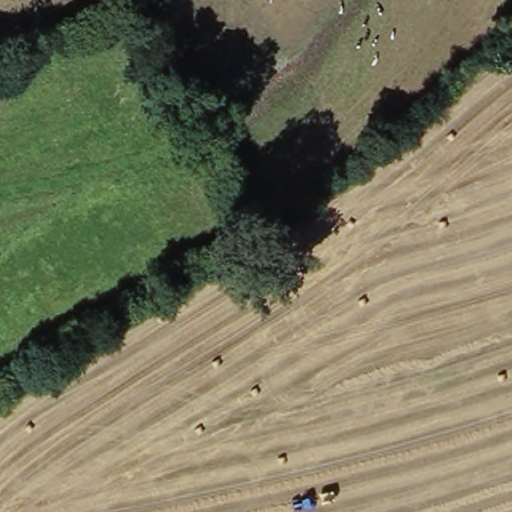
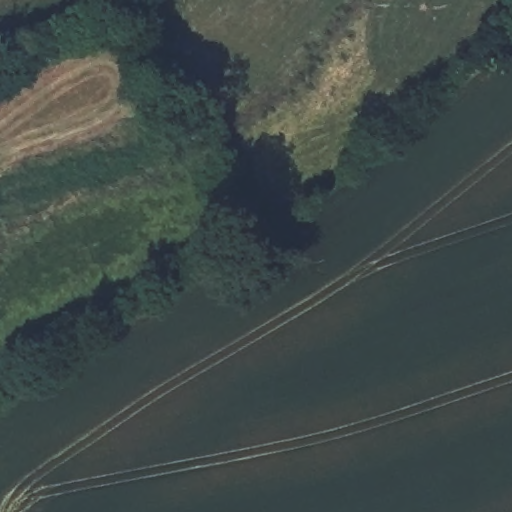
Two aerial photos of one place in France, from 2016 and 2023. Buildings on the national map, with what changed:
[]

